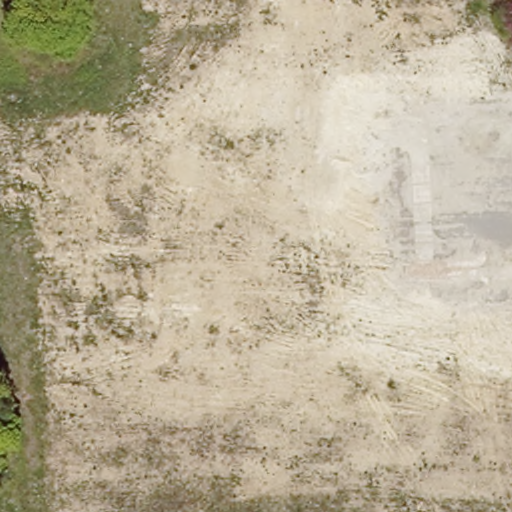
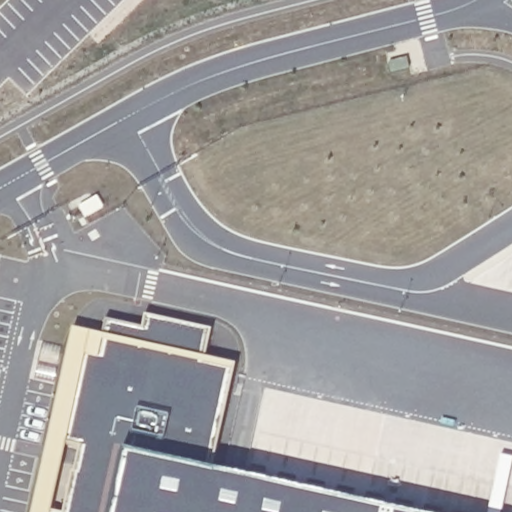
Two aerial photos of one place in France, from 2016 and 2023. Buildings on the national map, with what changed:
new [(70,330),(100,338),(104,323),(140,331),(143,319),(212,334),(207,360),(237,369),(212,478),(362,512),(30,512),(70,330)]

